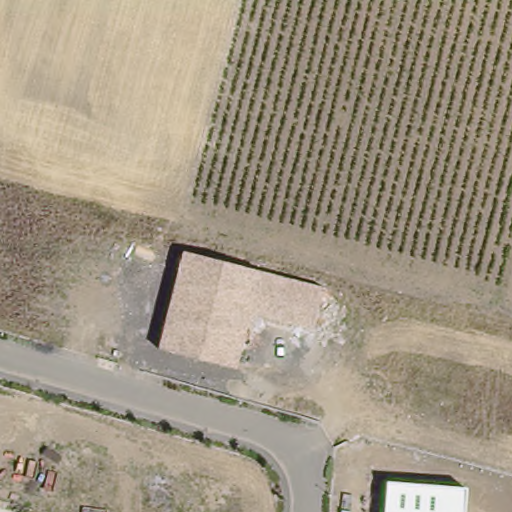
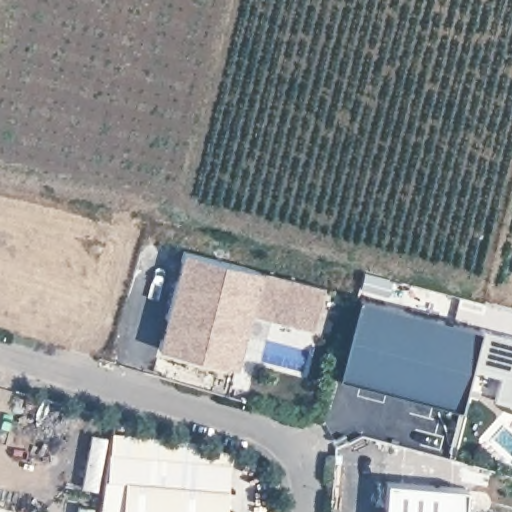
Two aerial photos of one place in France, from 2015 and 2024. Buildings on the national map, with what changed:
unchanged [(313,330),(248,313),(235,370),(157,349),(182,252),(261,271),(325,289),(313,330)]
new [(481,327),(512,337),(512,403),(495,400),(501,373),(471,364),(460,409),(336,376),(356,298),(481,327)]
new [(108,431),(233,447),(228,493),(125,484),(123,512),(98,512),(108,431)]
unchanged [(463,512),(382,512),(385,482),(466,488),(463,512)]
new [(125,484),(228,493),(226,512),(123,512),(125,484)]
unchanged [(0,511),(2,512),(0,512),(0,511)]

